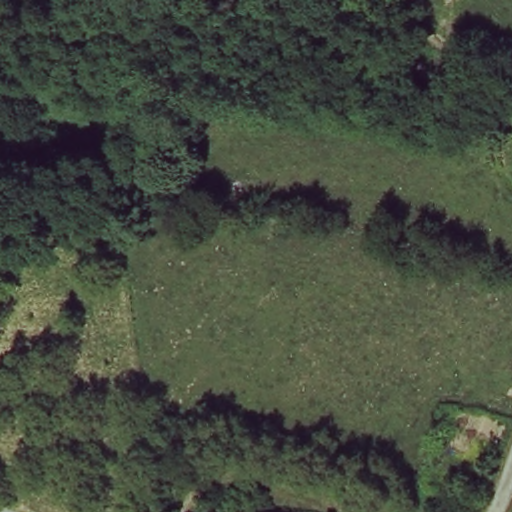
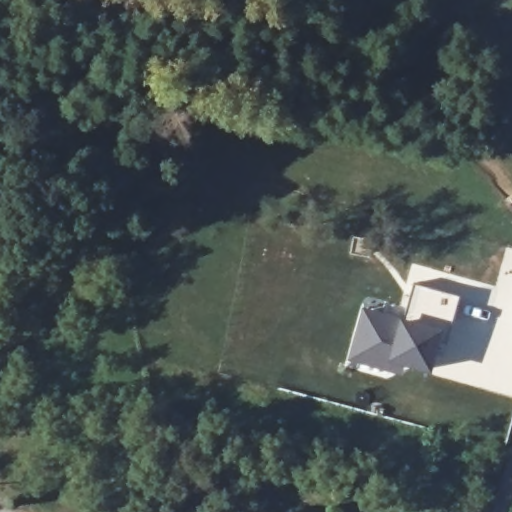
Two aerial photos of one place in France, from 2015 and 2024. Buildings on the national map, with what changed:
new [(389,370),(364,363),(352,360),(358,336),(365,313),(402,323),(412,285),(458,297),(447,337),(432,332),(430,340),(435,342),(428,370),(403,363),(400,373),(389,370)]
new [(447,337),(445,344),(430,340),(432,332),(447,337)]

